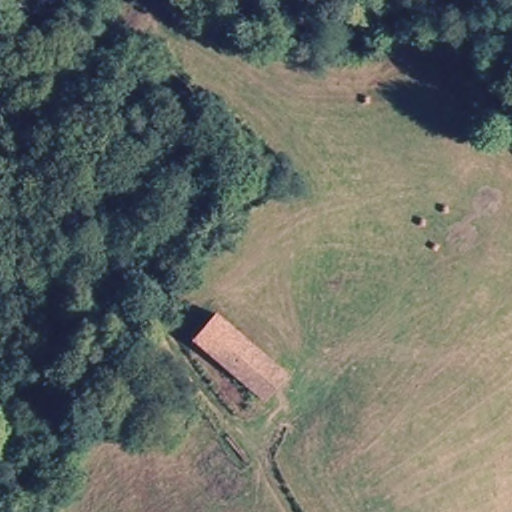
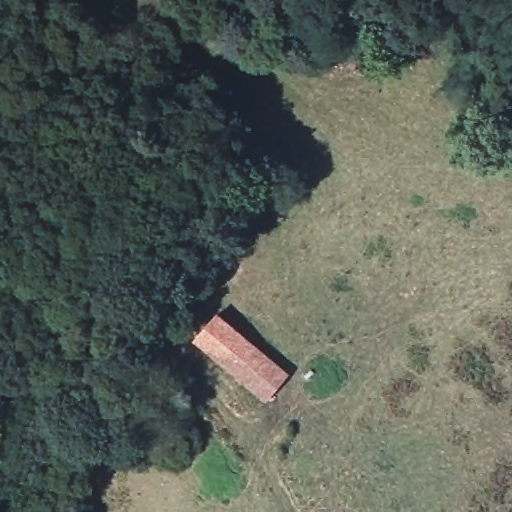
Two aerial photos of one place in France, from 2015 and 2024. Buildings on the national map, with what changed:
unchanged [(294,372),(269,406),(195,346),(222,315),(294,372)]

